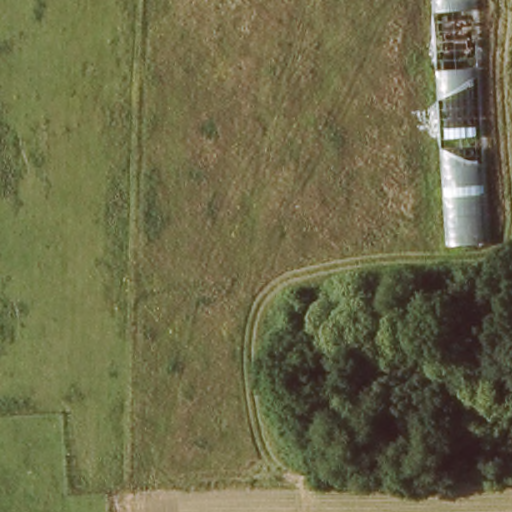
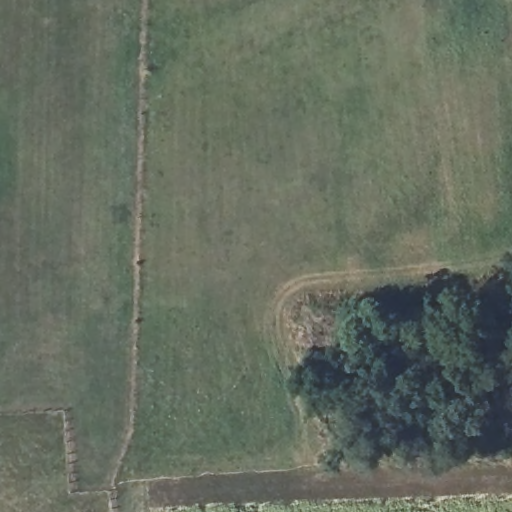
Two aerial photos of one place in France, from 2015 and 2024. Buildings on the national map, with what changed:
demolished [(495,239),(452,239),(433,0),(476,0),(485,78),(495,239)]

